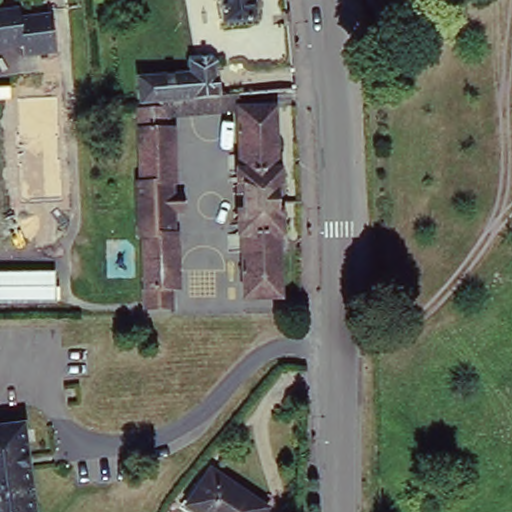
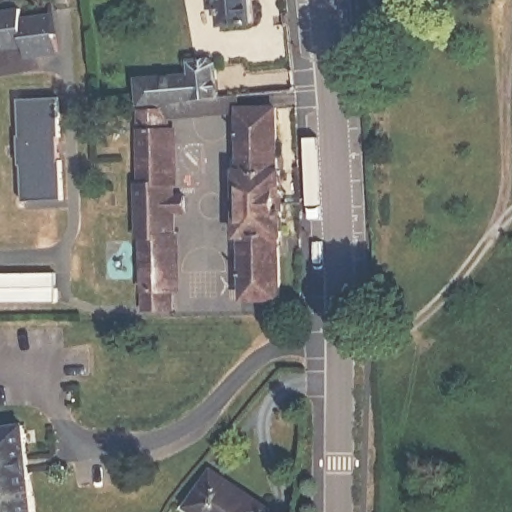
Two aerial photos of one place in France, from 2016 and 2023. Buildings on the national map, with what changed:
unchanged [(224,21),(222,0),(252,0),(254,17),(224,21)]
unchanged [(20,18),(50,14),(56,52),(26,57),(25,45),(0,49),(0,11),(19,8),(20,18)]
unchanged [(142,102),(140,78),(192,73),(190,60),(210,59),(218,64),(220,95),(142,102)]
unchanged [(240,109),(168,114),(167,107),(140,108),(140,102),(142,102),(220,95),(239,95),(240,109)]
new [(61,136),(57,136),(58,162),(63,161),(62,200),(23,200),(21,166),(19,166),(16,137),(20,137),(19,100),(59,97),(61,136)]
unchanged [(140,108),(167,107),(168,114),(168,126),(172,126),(173,182),(141,183),(140,108)]
unchanged [(275,107),(277,168),(281,168),(283,235),(279,235),(280,295),(244,297),(243,235),(238,235),(237,170),(241,170),(240,109),(275,107)]
unchanged [(143,237),(140,237),(139,235),(138,183),(141,183),(173,182),(173,195),(185,195),(185,212),(174,212),(174,234),(143,235),(143,237)]
unchanged [(143,237),(143,235),(174,234),(174,289),(170,288),(171,308),(144,310),(143,237)]
unchanged [(54,299),(0,299),(0,268),(54,268),(54,299)]
unchanged [(36,512),(0,512),(0,429),(25,426),(36,512)]
unchanged [(269,508),(266,512),(192,512),(188,509),(210,472),(269,508)]

